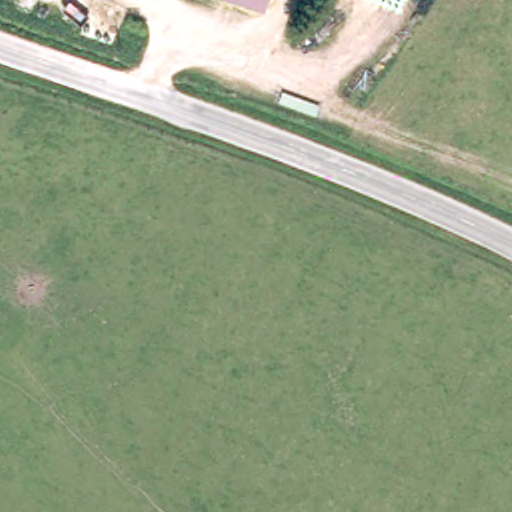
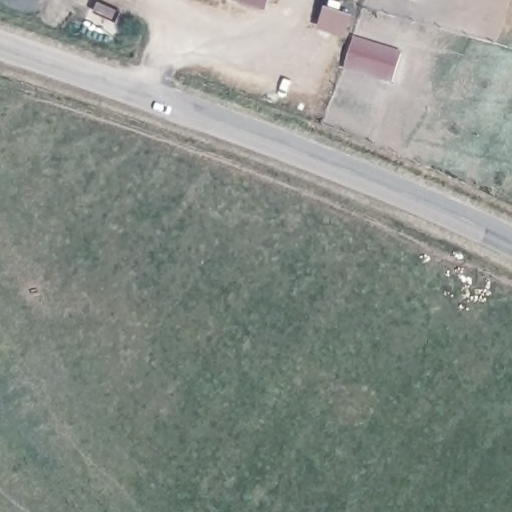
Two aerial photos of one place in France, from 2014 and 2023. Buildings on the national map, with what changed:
unchanged [(231,0),(264,0),(261,10),(231,0)]
new [(415,0),(419,0),(419,1),(415,0)]
new [(352,13),(344,35),(317,28),(324,4),(352,13)]
new [(402,50),(393,83),(344,68),(354,35),(402,50)]

